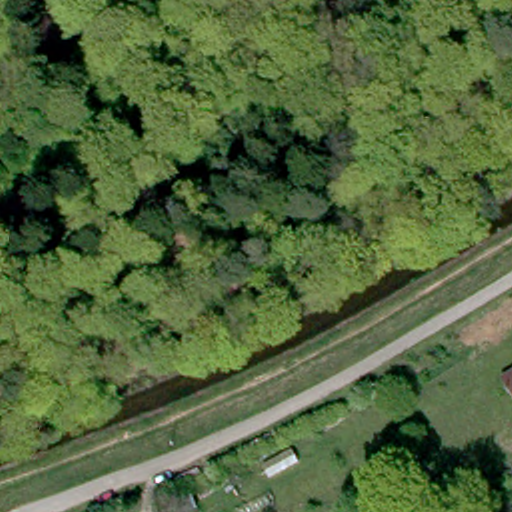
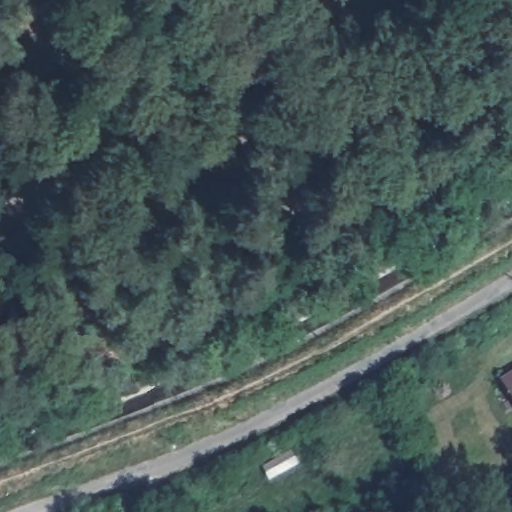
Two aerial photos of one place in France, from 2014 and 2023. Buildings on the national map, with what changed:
unchanged [(501,376),(512,369),(512,396),(501,376)]

